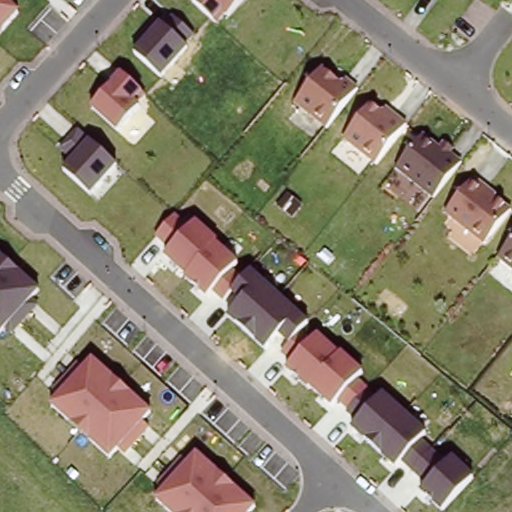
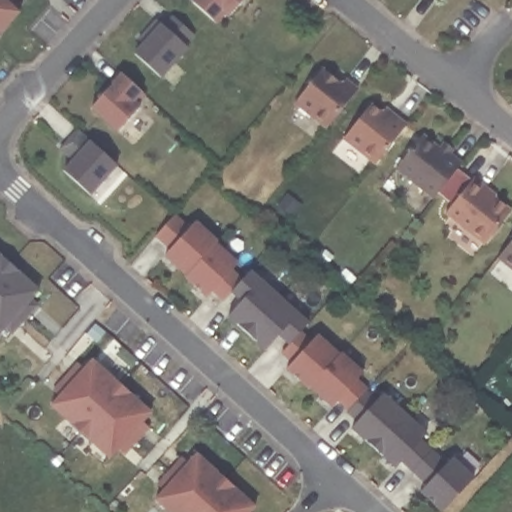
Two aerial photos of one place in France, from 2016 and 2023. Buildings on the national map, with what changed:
unchanged [(20,11),(0,33),(0,0),(8,0),(20,11)]
unchanged [(192,1),(192,0),(239,0),(216,25),(192,1)]
unchanged [(132,50),(158,19),(166,26),(175,16),(197,34),(187,46),(162,76),(132,50)]
unchanged [(320,68),(353,92),(326,128),(294,103),(320,68)]
unchanged [(91,107),(120,72),(148,97),(117,132),(91,107)]
unchanged [(370,103),(382,112),(385,108),(407,124),(374,164),(342,139),(370,103)]
unchanged [(62,171),(73,157),(57,148),(74,129),(90,140),(117,163),(92,196),(62,171)]
unchanged [(440,145),(443,141),(455,150),(452,154),(462,162),(432,199),(395,170),(424,132),(440,145)]
unchanged [(495,193),(493,197),(510,209),(484,244),(445,213),(473,176),(495,193)]
unchanged [(277,335),(264,349),(227,314),(237,304),(217,285),(206,298),(162,258),(170,250),(155,238),(174,215),(189,228),(195,221),(238,260),(231,270),(242,280),(252,269),(308,322),(289,346),(277,335)]
unchanged [(512,239),(512,270),(497,259),(512,239)]
unchanged [(40,288),(29,302),(37,309),(15,334),(7,326),(0,333),(0,250),(40,288)]
unchanged [(425,484),(400,461),(392,470),(343,429),(350,421),(332,406),(285,366),(317,330),(364,371),(356,381),(375,398),(384,389),(429,430),(420,441),(445,465),(454,456),(474,477),(442,512),(441,512),(419,493),(425,484)]
unchanged [(92,357),(150,411),(109,458),(50,405),(92,357)]
unchanged [(255,505),(249,512),(170,512),(155,498),(197,454),(255,505)]

